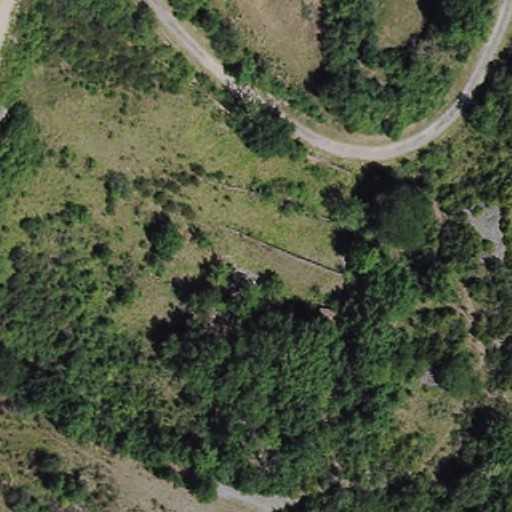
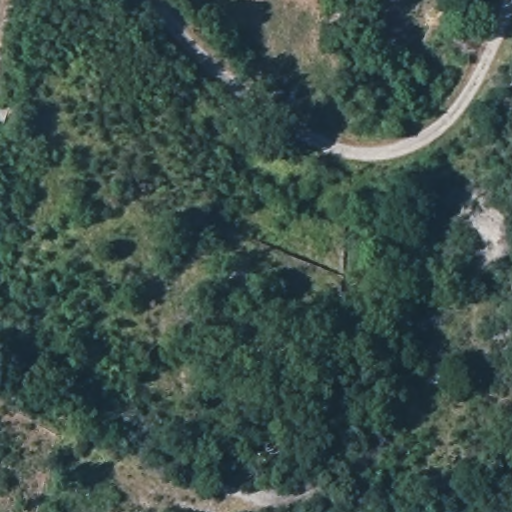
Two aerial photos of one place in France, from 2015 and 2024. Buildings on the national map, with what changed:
unchanged [(312,308),(315,292),(338,298),(337,315),(312,308)]

